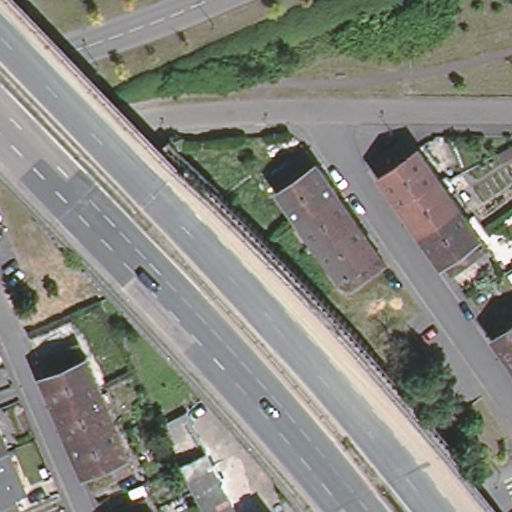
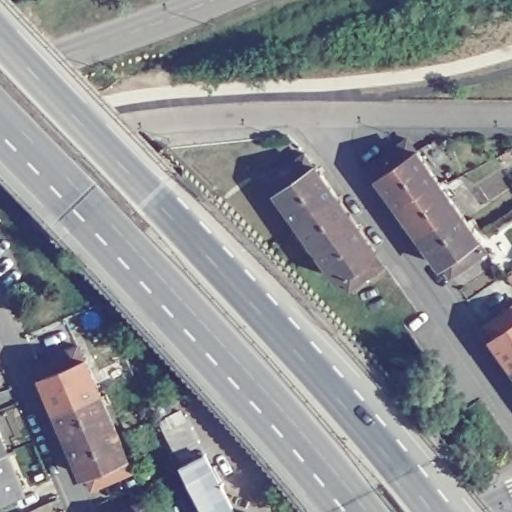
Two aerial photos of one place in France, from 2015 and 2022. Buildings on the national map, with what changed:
unchanged [(383,154),(394,146),(407,138),(416,150),(417,149),(437,178),(397,206),(378,177),(379,177),(369,163),(383,154)]
unchanged [(268,178),(280,169),(293,161),(304,153),(313,166),(314,164),(336,194),(296,221),(280,198),(276,192),(276,191),(268,178)]
unchanged [(437,178),(457,207),(418,235),(397,206),(437,178)]
unchanged [(299,225),(296,221),(336,194),(356,223),(316,250),(299,225)]
unchanged [(448,276),(439,264),(438,265),(418,235),(457,207),(478,237),(476,238),(484,251),(473,260),(459,268),(448,276)]
unchanged [(347,291),(339,279),(337,280),(316,250),(356,223),(376,252),(374,253),(383,266),(373,273),(359,282),(347,291)]
unchanged [(494,316),(507,307),(512,303),(512,364),(509,367),(489,337),(489,336),(482,325),(494,316)]
unchanged [(91,485),(86,474),(81,476),(60,427),(38,376),(43,374),(38,361),(75,345),(80,358),(84,356),(127,456),(124,458),(129,469),(91,485)]
unchanged [(512,364),(512,371),(509,367),(512,364)]
unchanged [(185,478),(179,466),(179,465),(173,452),(166,438),(158,423),(183,410),(191,425),(198,440),(203,454),(209,467),(208,468),(213,483),(216,482),(224,498),(221,499),(227,512),(202,512),(185,478)]
unchanged [(0,453),(0,437),(5,451),(0,453)]
unchanged [(21,488),(0,497),(0,453),(5,451),(21,488)]
unchanged [(141,499),(148,511),(150,510),(151,512),(110,512),(141,499)]

